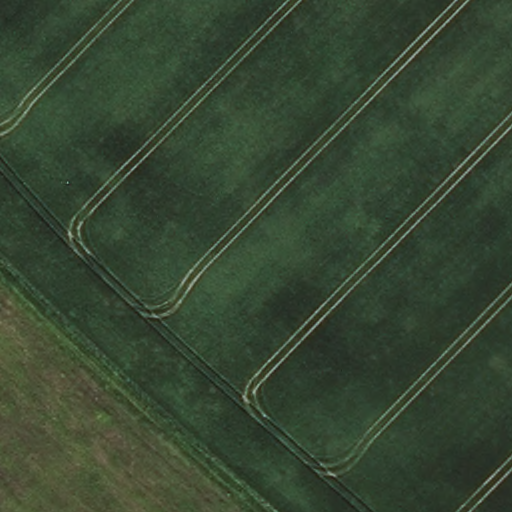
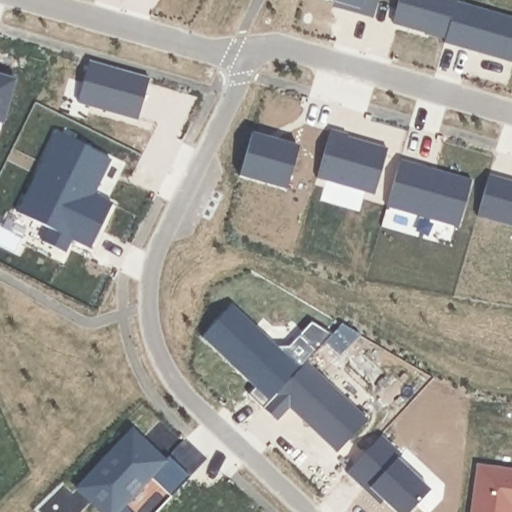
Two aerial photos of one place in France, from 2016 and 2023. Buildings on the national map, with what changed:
new [(340,10),(342,5),(325,0),(378,0),(373,19),(340,10)]
new [(456,0),(455,3),(445,39),(393,23),(399,0),(456,0)]
new [(455,3),(512,19),(512,63),(444,44),(445,39),(455,3)]
new [(89,61),(150,79),(138,119),(78,103),(89,61)]
new [(15,79),(3,124),(0,123),(0,73),(15,79)]
new [(330,130),(347,135),(346,137),(388,149),(375,195),(316,178),(330,130)]
new [(56,134),(111,160),(94,195),(113,204),(91,249),(72,240),(65,254),(43,243),(49,229),(18,214),(56,134)]
new [(251,134),(299,147),(286,190),(238,177),(251,134)]
new [(399,160),(472,180),(459,228),(386,207),(399,160)]
new [(512,182),(512,226),(477,217),(489,175),(512,182)]
new [(276,346),(288,347),(299,335),(311,322),(322,329),(332,334),(306,361),(262,408),(248,394),(254,389),(202,338),(233,305),(276,346)]
new [(306,361),(368,421),(338,453),(290,408),(276,422),(262,408),(306,361)]
new [(133,430),(158,453),(153,458),(161,466),(169,457),(191,477),(171,497),(150,477),(123,505),(130,512),(100,512),(76,489),(133,430)]
new [(381,435),(402,455),(398,460),(430,491),(410,512),(395,512),(384,501),(380,504),(346,473),(381,435)]
new [(478,465),(512,470),(512,512),(471,512),(478,465)]

